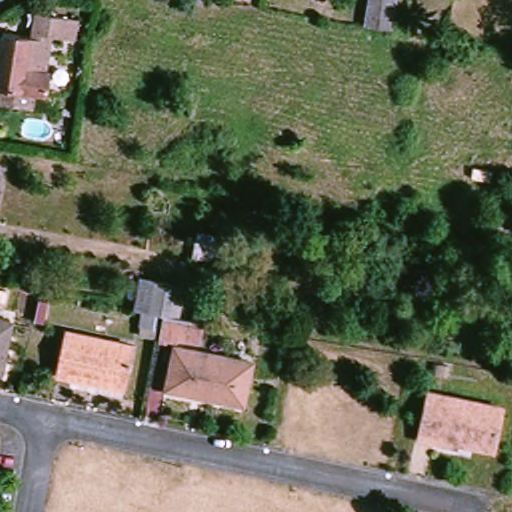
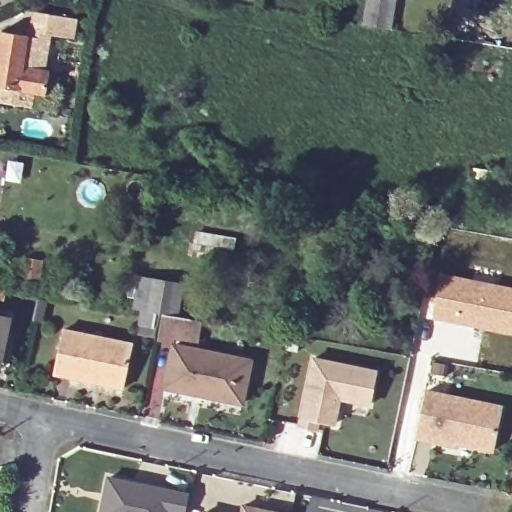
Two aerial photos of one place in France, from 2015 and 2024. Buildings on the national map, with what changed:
unchanged [(366,22),(370,0),(399,0),(395,27),(380,24),(366,22)]
unchanged [(45,96),(0,89),(0,34),(31,38),(36,13),(72,19),(70,39),(47,36),(46,41),(41,72),(49,74),(45,96)]
new [(435,270),(512,286),(512,336),(428,317),(435,270)]
unchanged [(175,341),(175,343),(156,340),(161,316),(158,316),(138,312),(144,280),(185,288),(180,319),(201,323),(197,344),(175,341)]
unchanged [(0,322),(7,323),(0,361),(0,322)]
unchanged [(120,388),(56,374),(66,331),(130,345),(120,388)]
unchanged [(239,406),(166,390),(174,349),(248,365),(239,406)]
new [(338,399),(332,424),(316,421),(315,429),(298,425),(313,358),(376,373),(368,406),(365,419),(348,414),(351,402),(338,399)]
unchanged [(490,451),(415,433),(424,392),(498,408),(490,451)]
new [(185,492),(181,512),(170,512),(164,510),(163,512),(94,512),(102,475),(185,492)]
new [(272,512),(237,512),(238,506),(272,512)]

